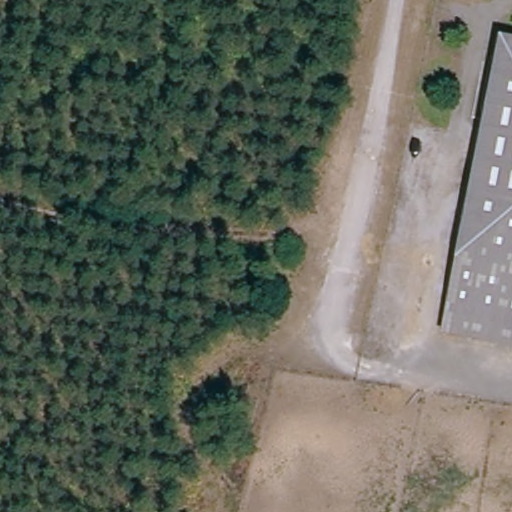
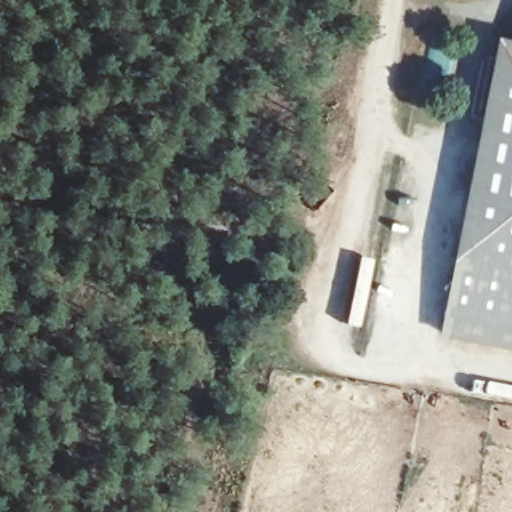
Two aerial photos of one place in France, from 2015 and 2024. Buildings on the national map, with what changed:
unchanged [(502,44),(512,46),(512,332),(447,319),(502,44)]
unchanged [(443,338),(447,319),(512,332),(512,352),(443,338)]

